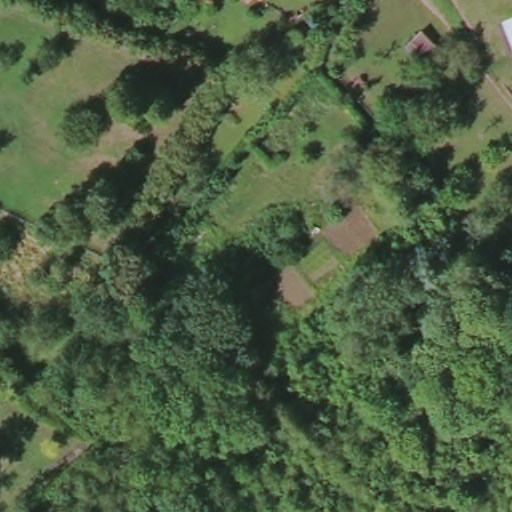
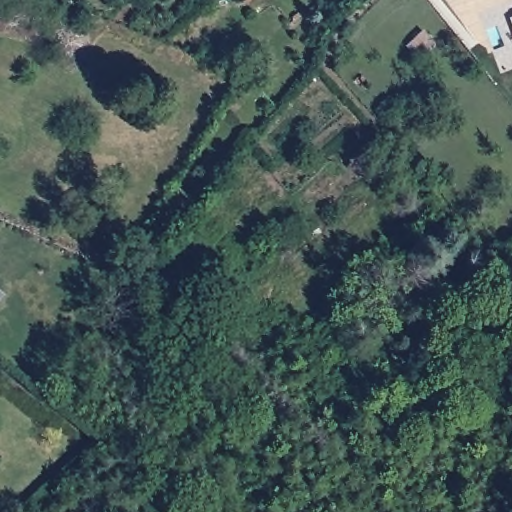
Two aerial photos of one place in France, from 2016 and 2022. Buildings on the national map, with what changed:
unchanged [(240,0),(257,0),(249,9),(240,0)]

